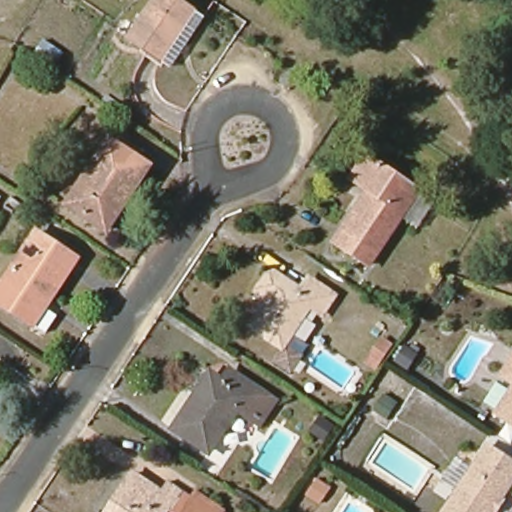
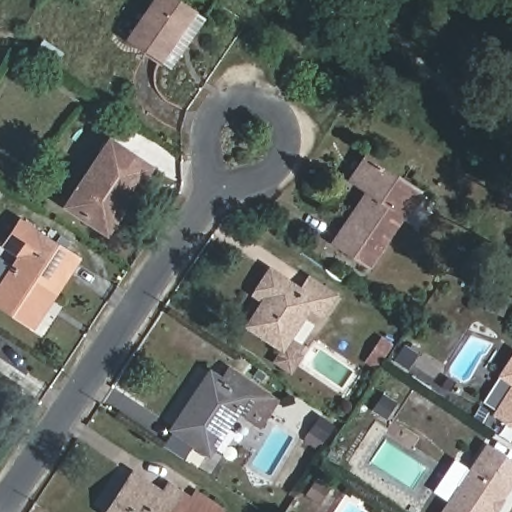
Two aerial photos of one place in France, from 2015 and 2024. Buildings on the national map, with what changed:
unchanged [(140,45),(170,0),(194,18),(164,61),(140,45)]
unchanged [(142,174),(104,229),(71,207),(110,151),(142,174)]
unchanged [(425,193),(373,267),(336,244),(365,200),(345,187),(367,156),(425,193)]
unchanged [(31,323),(0,304),(0,298),(44,242),(75,260),(31,323)]
unchanged [(324,320),(312,312),(285,351),(260,337),(273,320),(252,303),(270,271),(301,288),(309,277),(340,297),(324,320)]
unchanged [(510,385),(500,378),(512,352),(512,424),(493,415),(510,385)]
unchanged [(285,402),(266,428),(245,416),(219,453),(185,430),(229,365),(285,402)]
unchanged [(486,512),(438,512),(485,444),(512,465),(512,477),(486,512)]
unchanged [(171,478),(195,498),(200,492),(228,512),(108,512),(130,470),(162,490),(171,478)]

